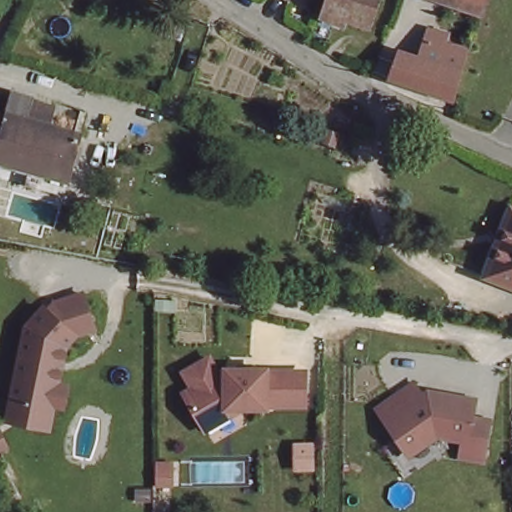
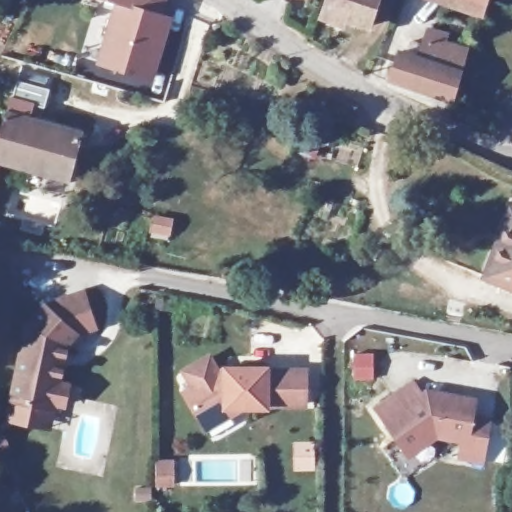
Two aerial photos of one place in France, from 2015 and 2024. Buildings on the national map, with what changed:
new [(114,2),(107,0),(170,0),(166,17),(175,20),(159,80),(107,66),(123,7),(113,4),(114,2)]
unchanged [(321,9),(325,0),(377,0),(366,28),(321,9)]
unchanged [(467,0),(485,0),(483,6),(467,0)]
unchanged [(421,58),(429,28),(447,34),(444,42),(468,47),(455,98),(390,80),(399,51),(421,58)]
unchanged [(48,97),(45,119),(81,127),(69,177),(0,158),(0,128),(7,87),(23,91),(48,97)]
unchanged [(483,273),(493,245),(502,250),(512,221),(512,283),(483,273)]
unchanged [(9,417),(13,397),(28,322),(46,306),(50,307),(55,299),(83,289),(96,325),(77,331),(68,342),(60,380),(69,382),(65,402),(56,401),(54,406),(51,425),(9,417)]
unchanged [(221,370),(261,371),(261,373),(299,373),(299,390),(294,390),(294,405),(261,405),(261,407),(221,407),(196,422),(180,393),(221,370)]
unchanged [(495,417),(489,452),(471,450),(474,432),(444,427),(418,446),(388,402),(404,392),(412,406),(437,389),(481,397),(478,415),(495,417)]

